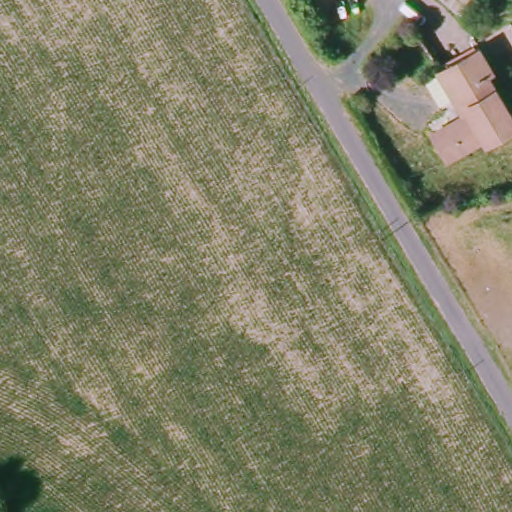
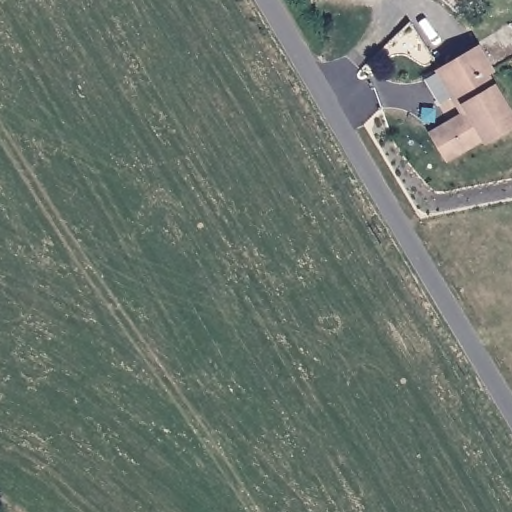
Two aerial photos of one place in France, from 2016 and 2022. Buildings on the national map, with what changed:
unchanged [(486,72),(482,75),(511,122),(480,144),(478,140),(441,165),(424,137),(460,113),(450,94),(444,97),(431,73),(471,49),(486,72)]

